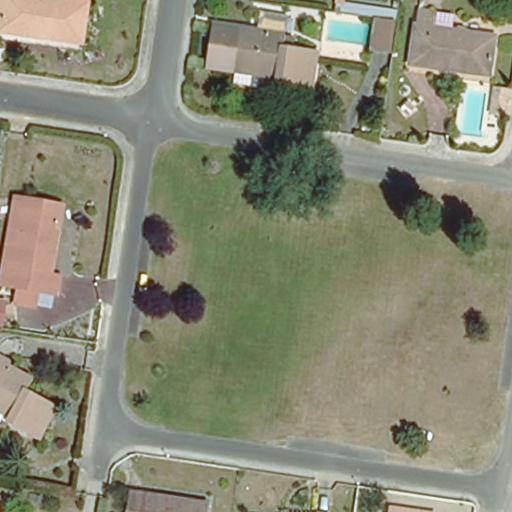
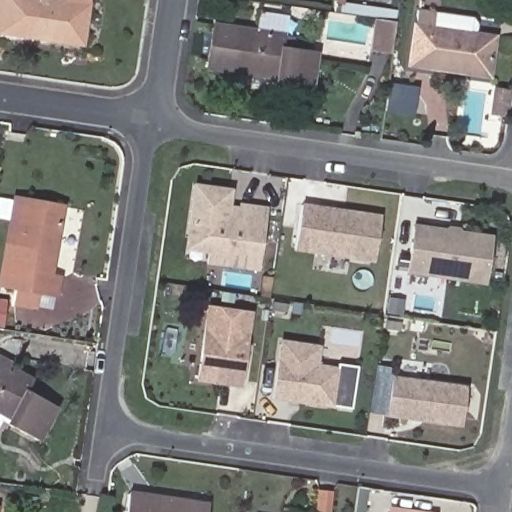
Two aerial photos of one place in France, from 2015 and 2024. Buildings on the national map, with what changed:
unchanged [(0,0),(45,0),(72,3),(73,0),(98,0),(97,6),(92,6),(86,46),(4,34),(0,33),(0,2),(0,0)]
unchanged [(417,7),(432,10),(429,25),(492,34),(486,73),(406,60),(411,23),(414,23),(417,7)]
unchanged [(312,58),(307,92),(272,87),(273,81),(204,70),(210,28),(253,34),(255,18),(282,22),(280,38),(278,53),(312,58)]
unchanged [(374,18),(396,22),(391,54),(369,50),(374,18)]
unchanged [(509,111),(493,109),(497,89),(511,91),(509,111)]
new [(230,191),(227,213),(242,215),(243,206),(265,209),(257,267),(209,260),(212,239),(190,236),(197,186),(230,191)]
unchanged [(0,279),(0,241),(8,192),(20,194),(9,260),(6,259),(2,279),(0,279)]
unchanged [(15,281),(2,279),(6,259),(9,260),(20,194),(57,201),(45,269),(55,271),(52,288),(34,285),(30,302),(11,298),(15,281)]
new [(374,258),(295,246),(301,202),(381,214),(374,258)]
new [(485,280),(408,269),(415,224),(491,235),(485,280)]
new [(241,383),(199,378),(209,306),(251,311),(241,383)]
unchanged [(18,323),(17,332),(0,330),(0,320),(18,323)]
new [(334,405),(275,396),(282,340),(320,346),(317,364),(339,367),(334,405)]
unchanged [(0,408),(0,353),(33,372),(27,383),(56,400),(37,434),(7,418),(9,413),(0,408)]
new [(462,423),(388,413),(393,376),(468,386),(462,423)]
unchanged [(204,499),(202,512),(122,512),(125,487),(204,499)]
unchanged [(429,509),(429,512),(386,512),(387,503),(429,509)]
unchanged [(327,512),(321,512),(321,511),(327,512)]

